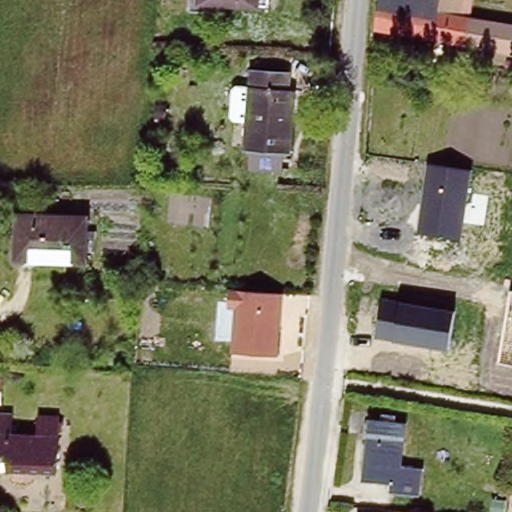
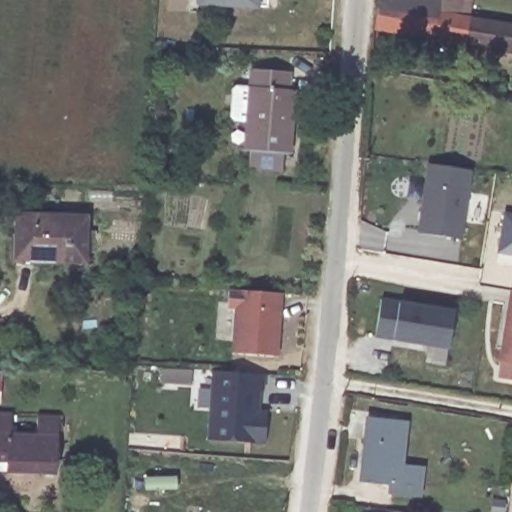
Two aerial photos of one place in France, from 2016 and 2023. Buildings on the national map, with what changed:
unchanged [(256,8),(198,3),(198,0),(257,0),(256,8)]
unchanged [(469,18),(512,25),(512,53),(373,29),(375,7),(379,7),(380,0),(472,0),(469,18)]
unchanged [(289,90),(294,90),(290,154),(245,150),(251,69),(290,73),(289,90)]
unchanged [(426,163),(469,169),(460,238),(417,233),(426,163)]
new [(505,211),(512,213),(512,255),(498,253),(505,211)]
unchanged [(85,261),(15,259),(16,214),(88,216),(85,261)]
unchanged [(234,311),(226,311),(228,288),(283,295),(276,359),(231,355),(234,311)]
unchanged [(509,289),(512,290),(512,366),(498,363),(509,289)]
unchanged [(380,299),(454,309),(449,348),(374,336),(380,299)]
new [(264,389),(261,389),(260,410),(268,410),(266,443),(206,439),(209,369),(265,372),(264,389)]
unchanged [(1,401),(0,401),(0,381),(2,381),(1,401)]
unchanged [(11,409),(11,428),(38,429),(39,410),(59,410),(56,468),(6,466),(7,456),(0,456),(0,409),(11,409)]
unchanged [(362,474),(370,414),(379,415),(394,417),(407,419),(399,478),(402,463),(426,465),(422,497),(388,494),(388,488),(389,477),(362,474)]
new [(512,512),(510,512),(512,481),(512,512)]

